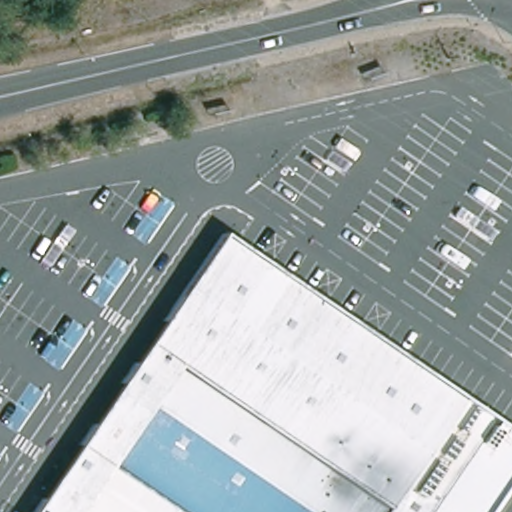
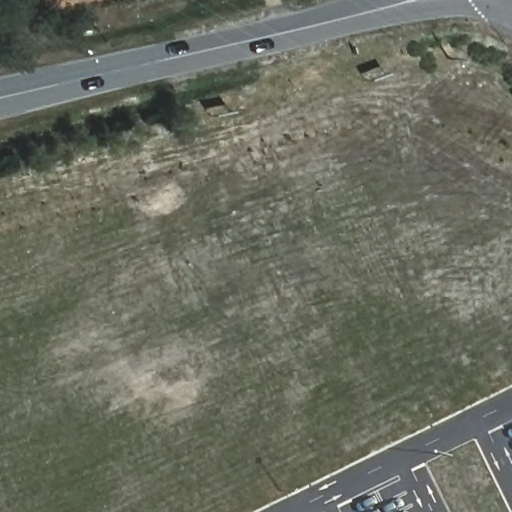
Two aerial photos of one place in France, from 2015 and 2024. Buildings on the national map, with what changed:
demolished [(510,433),(455,512),(12,512),(209,227),(474,409),(510,433)]
demolished [(510,433),(512,435),(512,481),(491,512),(455,512),(510,433)]

